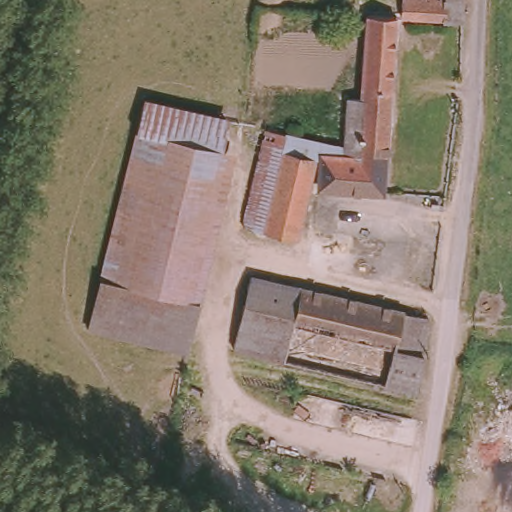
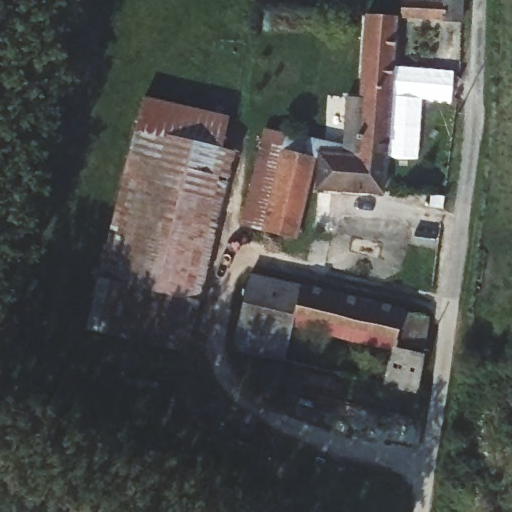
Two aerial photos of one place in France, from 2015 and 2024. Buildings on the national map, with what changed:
unchanged [(404,11),(405,0),(461,0),(460,15),(404,11)]
unchanged [(352,143),(345,142),(350,100),(356,101),(361,47),(365,8),(404,11),(389,150),(392,151),(392,164),(350,158),(352,143)]
new [(392,156),(392,151),(389,150),(398,66),(454,71),(452,101),(422,98),(417,157),(392,156)]
unchanged [(180,346),(102,326),(141,167),(158,97),(237,118),(222,176),(180,346)]
unchanged [(328,162),(330,156),(350,158),(347,190),(314,186),(258,180),(266,149),(295,155),(328,162)]
unchanged [(347,190),(350,158),(392,164),(389,194),(347,190)]
unchanged [(314,186),(301,235),(248,222),(258,180),(314,186)]
unchanged [(425,319),(409,392),(383,384),(391,344),(291,317),(285,354),(240,342),(259,268),(425,319)]

